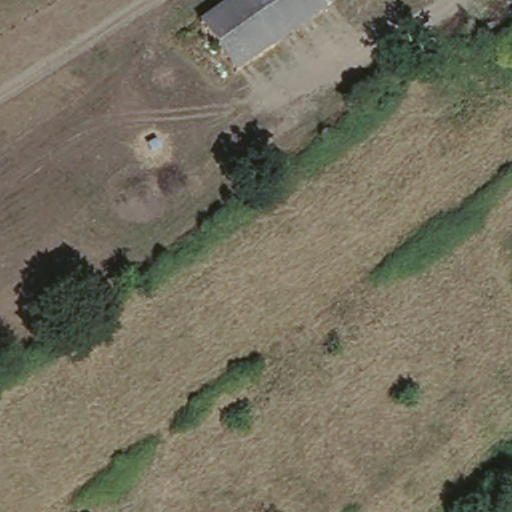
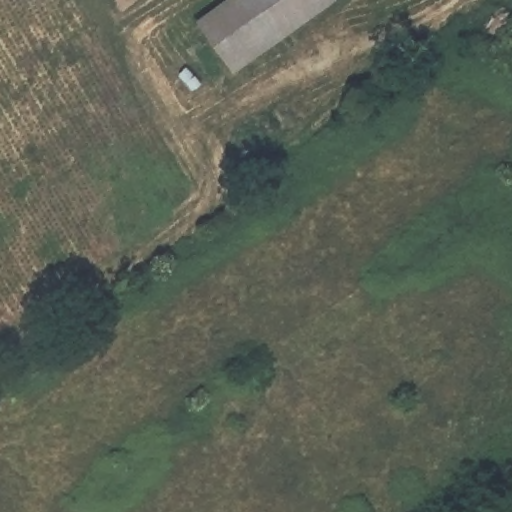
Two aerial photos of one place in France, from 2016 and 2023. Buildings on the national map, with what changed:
unchanged [(335,0),(235,71),(200,21),(229,0),(335,0)]

